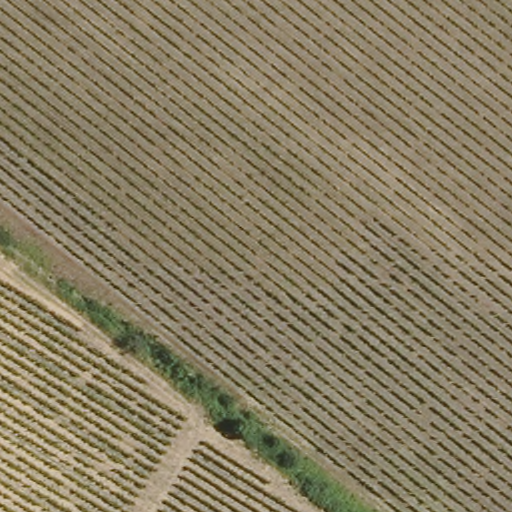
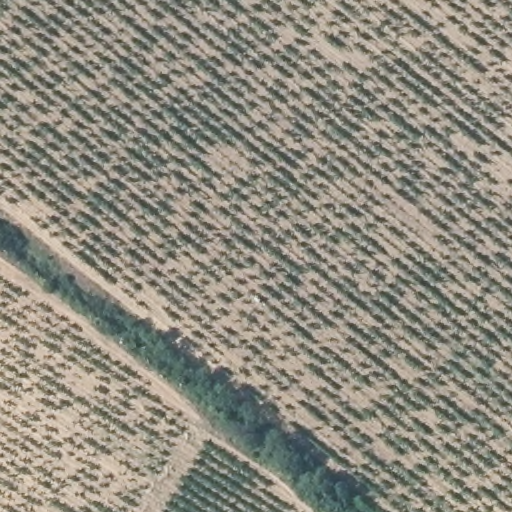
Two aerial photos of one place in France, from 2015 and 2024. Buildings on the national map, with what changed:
[]

